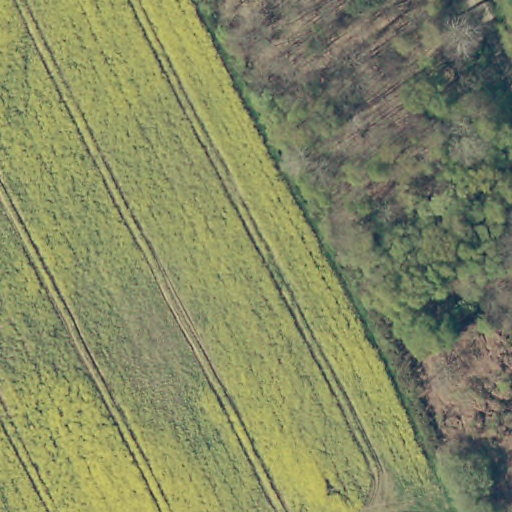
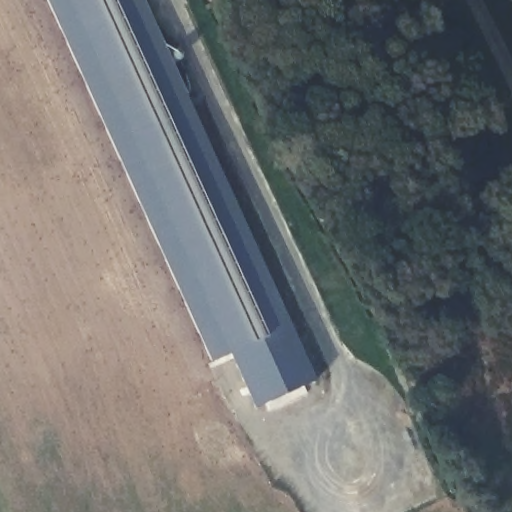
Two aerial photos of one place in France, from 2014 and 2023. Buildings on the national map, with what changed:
new [(317,381),(256,409),(233,353),(211,363),(47,0),(143,0),(317,381)]

